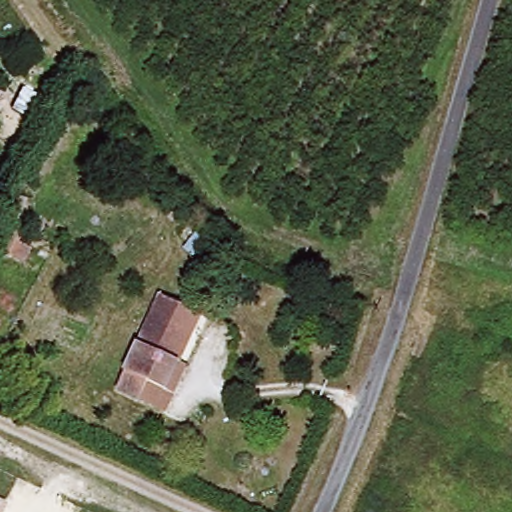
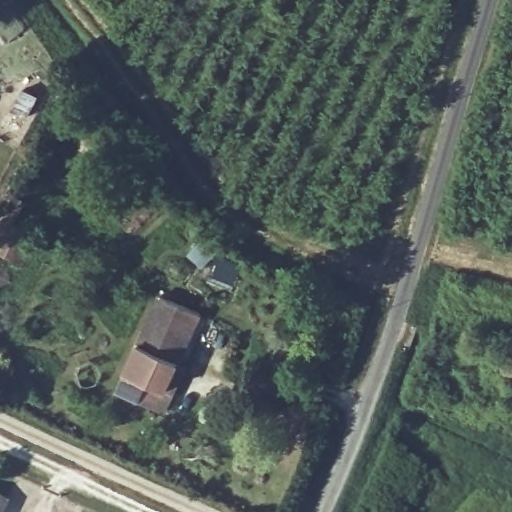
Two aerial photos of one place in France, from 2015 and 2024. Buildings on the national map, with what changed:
unchanged [(14,224),(0,249),(0,216),(14,224)]
unchanged [(141,405),(117,393),(165,295),(203,315),(179,364),(189,368),(176,396),(166,417),(141,405)]
unchanged [(6,504),(3,512),(0,512),(0,501),(6,504)]

